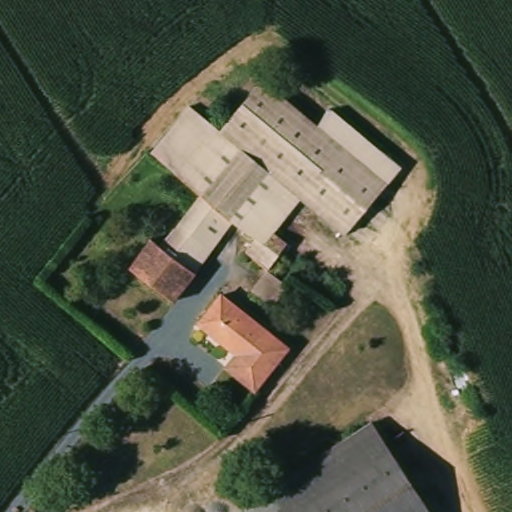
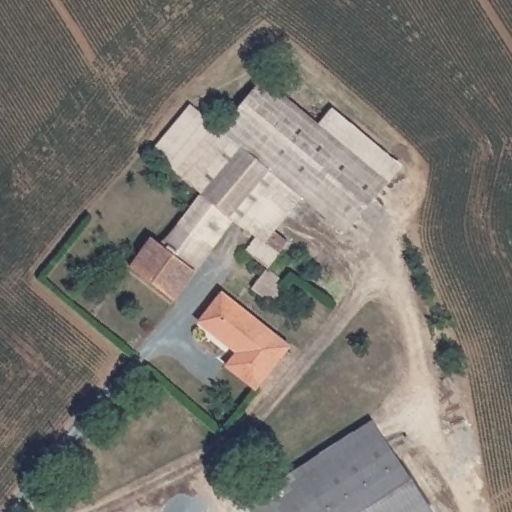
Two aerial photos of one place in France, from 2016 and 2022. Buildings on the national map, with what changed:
unchanged [(201,196),(153,155),(192,107),(224,130),(266,82),(322,129),(336,113),(403,170),(349,237),(304,203),(280,238),(299,254),(284,283),(291,288),(276,308),(256,292),(269,273),(249,254),(254,242),(238,226),(198,276),(155,240),(201,196)]
unchanged [(198,276),(179,303),(132,270),(155,240),(198,276)]
unchanged [(293,352),(258,394),(230,371),(238,358),(203,327),(225,297),(293,352)]
unchanged [(376,423),(434,512),(253,512),(249,506),(376,423)]

